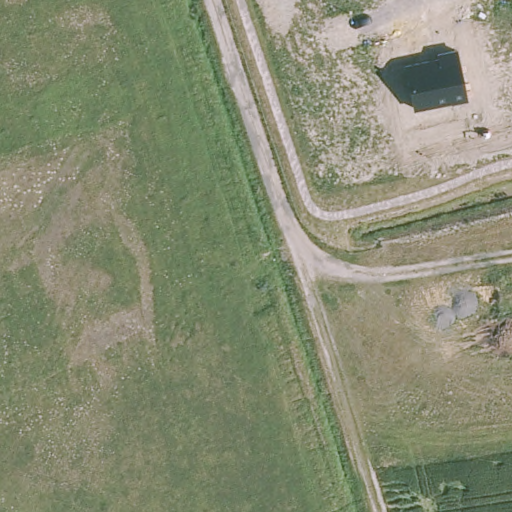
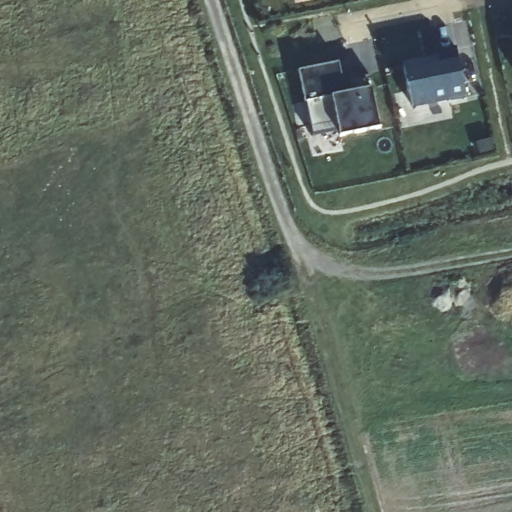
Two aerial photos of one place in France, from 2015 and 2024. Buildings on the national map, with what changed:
unchanged [(437,54),(437,49),(458,47),(468,97),(413,108),(403,62),(437,54)]
new [(340,62),(344,80),(352,79),(354,91),(374,88),(382,128),(342,136),(340,131),(314,137),(300,70),(340,62)]

